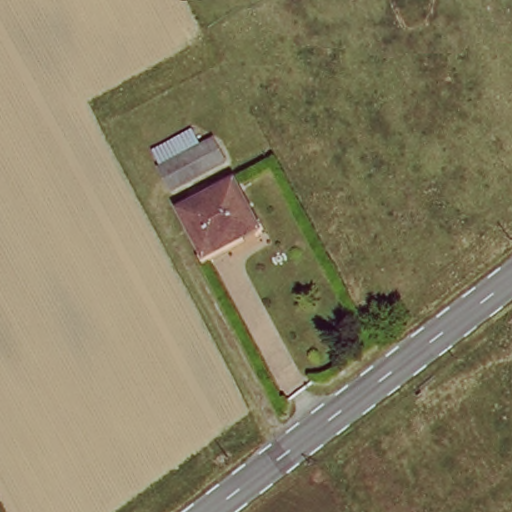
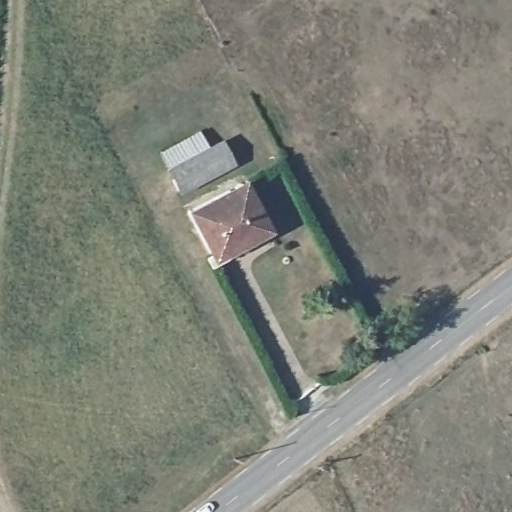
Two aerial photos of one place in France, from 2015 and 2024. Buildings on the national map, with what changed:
unchanged [(156,153),(198,130),(205,144),(218,137),(226,152),(233,167),(177,195),(176,194),(156,153)]
unchanged [(265,229),(238,242),(241,250),(213,263),(191,215),(244,188),(265,229)]

